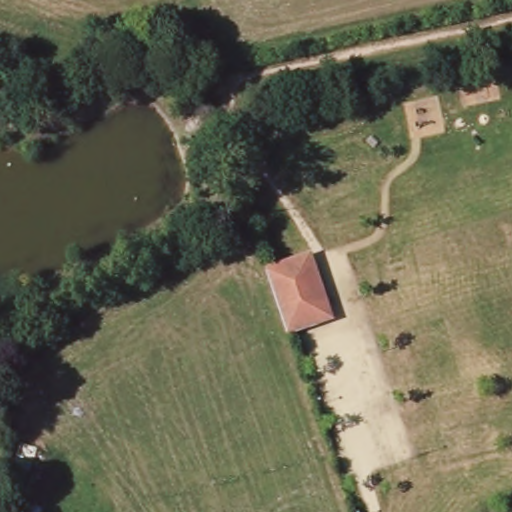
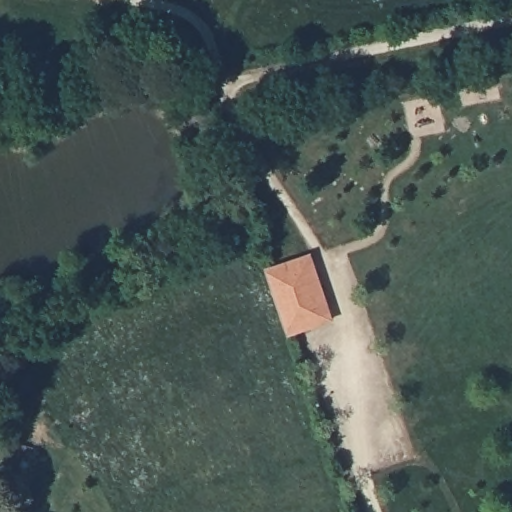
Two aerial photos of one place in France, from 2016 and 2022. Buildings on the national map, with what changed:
unchanged [(310,252),(331,322),(287,337),(266,268),(310,252)]

